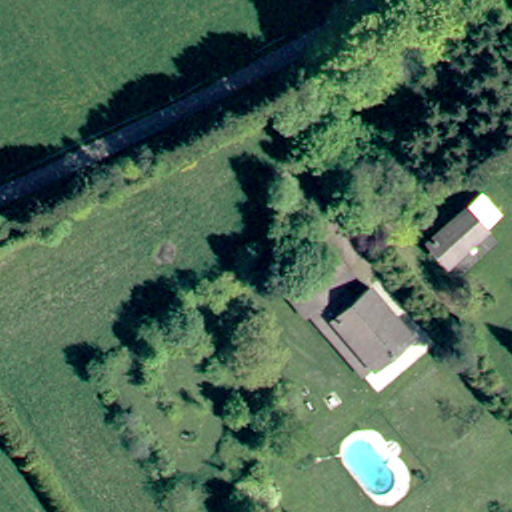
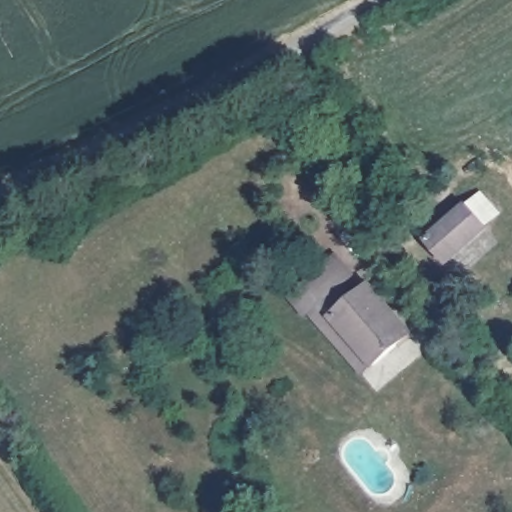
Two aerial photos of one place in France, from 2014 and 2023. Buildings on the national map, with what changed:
unchanged [(448,265),(431,244),(472,214),(485,204),(497,220),(499,223),(485,234),(487,238),(448,265)]
unchanged [(414,330),(378,363),(368,372),(327,324),(313,308),(302,294),(348,251),(362,265),(340,285),(354,301),(373,283),(414,330)]

